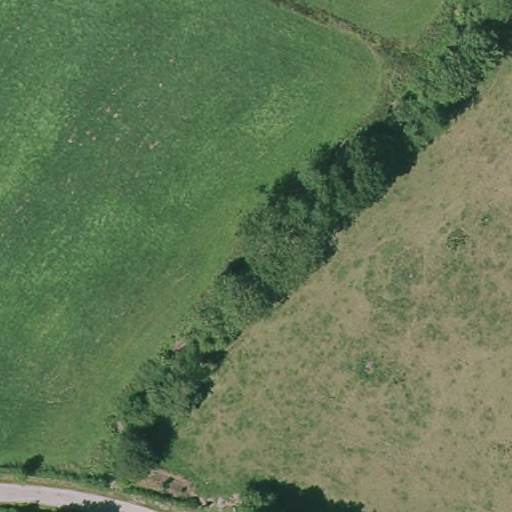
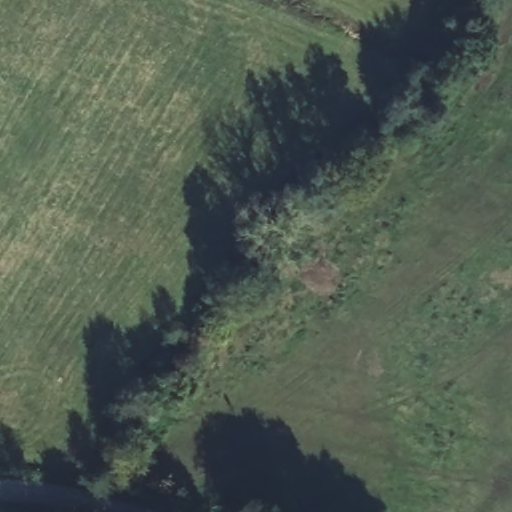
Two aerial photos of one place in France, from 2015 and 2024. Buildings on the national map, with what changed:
[]

